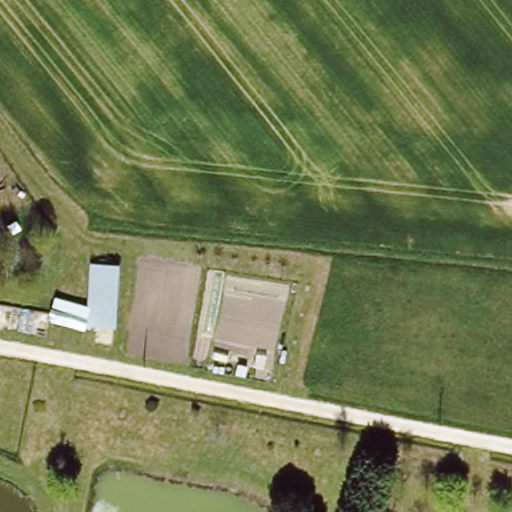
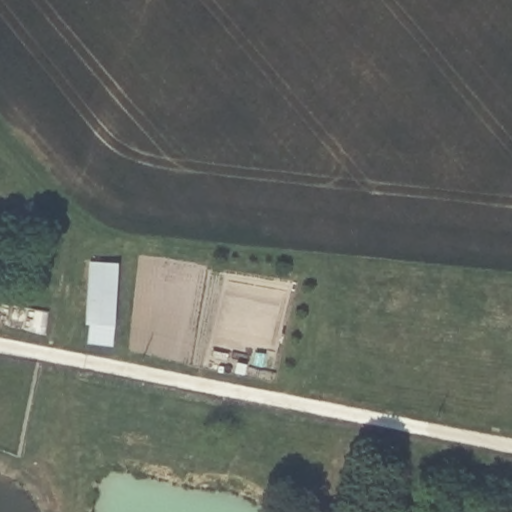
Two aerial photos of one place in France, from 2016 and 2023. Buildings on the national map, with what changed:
unchanged [(115,268),(108,327),(82,326),(91,265),(115,268)]

